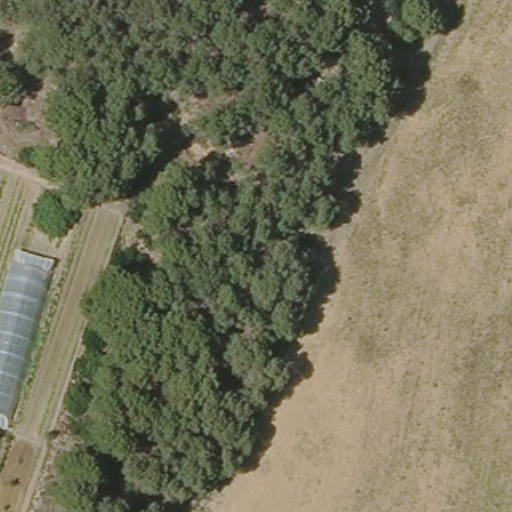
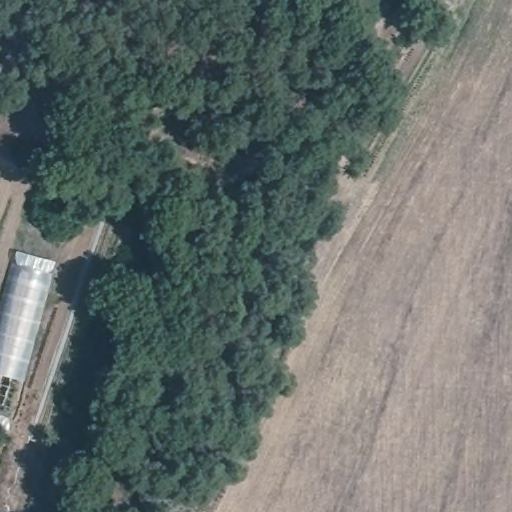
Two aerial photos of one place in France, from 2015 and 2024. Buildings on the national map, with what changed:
unchanged [(0,419),(0,280),(5,259),(47,271),(5,420),(0,419)]

